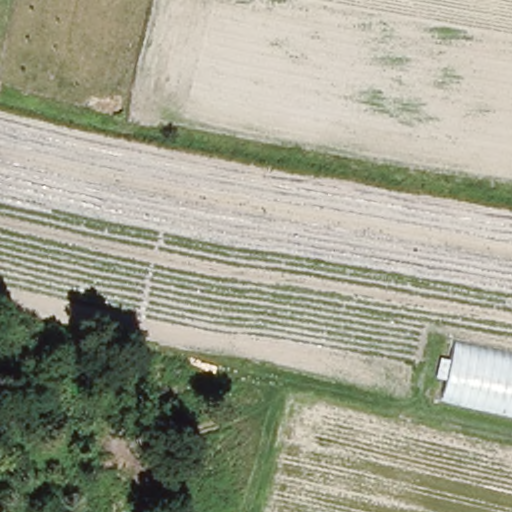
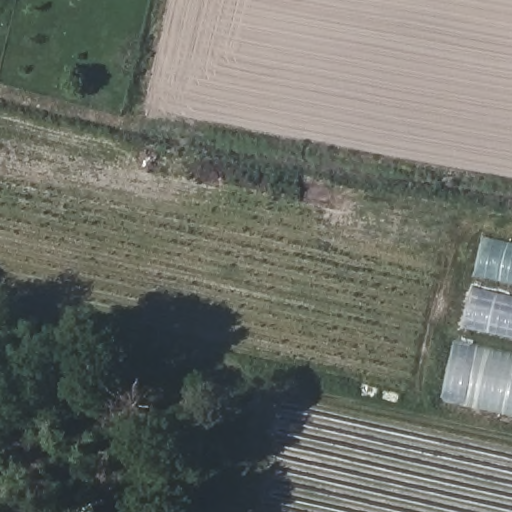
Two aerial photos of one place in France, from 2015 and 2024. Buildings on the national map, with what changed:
new [(462,329),(483,237),(512,243),(512,340),(462,329)]
unchanged [(429,399),(444,336),(512,351),(512,417),(429,399)]

